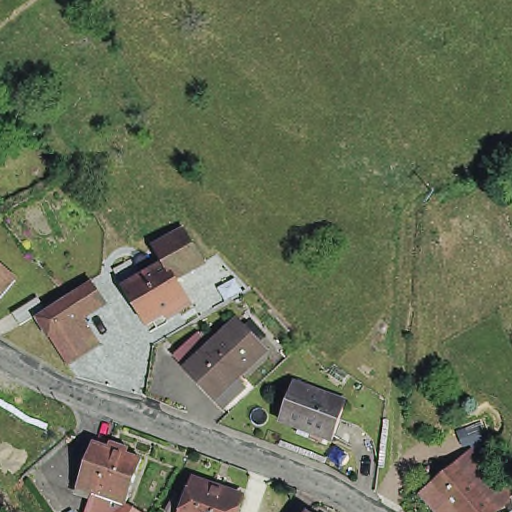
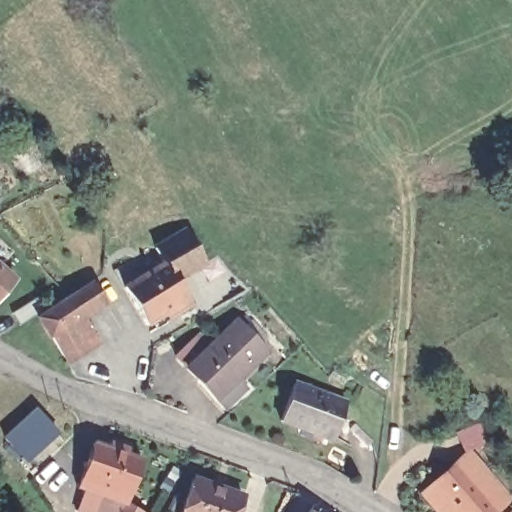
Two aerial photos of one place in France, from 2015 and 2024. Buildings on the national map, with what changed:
unchanged [(147,257),(177,239),(196,271),(168,287),(159,270),(156,272),(147,257)]
unchanged [(171,320),(169,317),(140,335),(115,297),(156,272),(159,270),(168,287),(173,295),(183,312),(171,320)]
unchanged [(12,285),(0,298),(0,274),(12,285)]
unchanged [(48,340),(37,324),(69,303),(91,289),(102,306),(79,320),(93,342),(97,347),(81,358),(66,368),(62,362),(48,340)]
unchanged [(40,314),(16,330),(8,317),(32,302),(40,314)]
unchanged [(213,406),(185,374),(173,362),(180,356),(197,341),(204,349),(207,353),(224,340),(236,328),(240,332),(264,360),(233,387),(242,397),(222,415),(213,406)]
unchanged [(327,446),(305,440),(274,430),(286,392),(318,402),(339,408),(327,446)]
new [(58,432),(27,462),(4,436),(35,406),(58,432)]
unchanged [(77,492),(93,447),(108,452),(110,447),(126,452),(124,458),(140,463),(126,502),(100,493),(99,500),(93,497),(77,492)]
unchanged [(475,447),(505,482),(512,491),(512,503),(501,512),(434,512),(420,495),(430,487),(454,466),(475,447)]
unchanged [(237,500),(232,512),(176,512),(186,482),(237,500)]
unchanged [(88,512),(93,497),(99,500),(100,493),(126,502),(124,508),(130,512),(88,512)]

